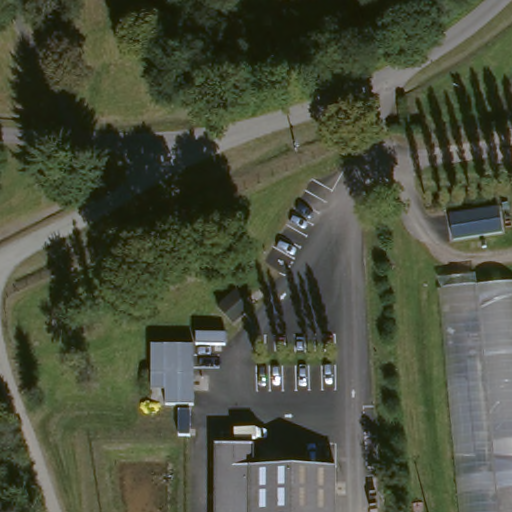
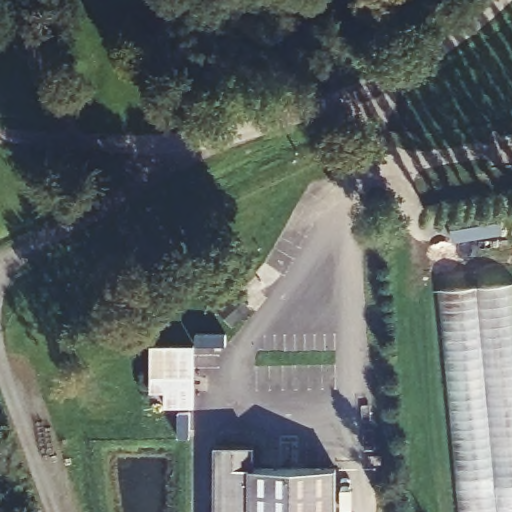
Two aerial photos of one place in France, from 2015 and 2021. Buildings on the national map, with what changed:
unchanged [(503,235),(453,242),(449,215),(499,207),(503,235)]
unchanged [(512,512),(449,512),(431,296),(509,287),(512,322),(512,512)]
unchanged [(250,310),(234,324),(220,307),(236,294),(250,310)]
unchanged [(194,343),(193,404),(164,403),(165,373),(151,373),(151,342),(194,343)]
unchanged [(332,512),(211,512),(211,473),(211,449),(211,448),(253,449),(253,474),(332,473),(332,512)]

